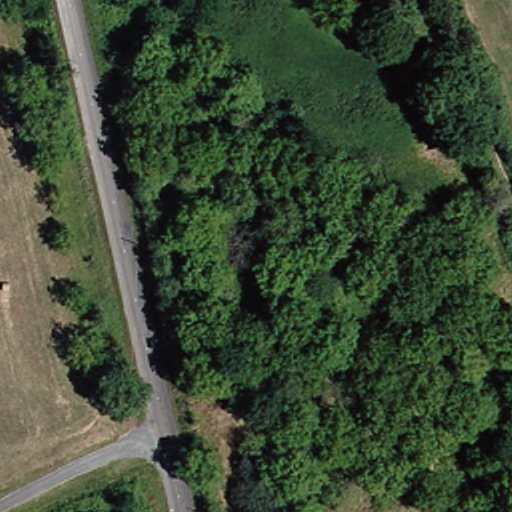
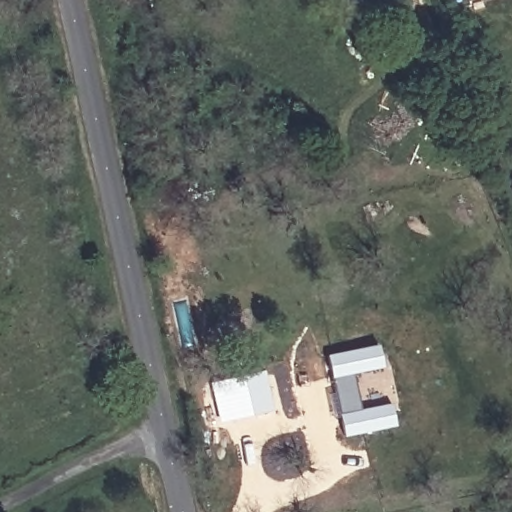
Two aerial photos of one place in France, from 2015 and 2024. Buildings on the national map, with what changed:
new [(377,345),(382,368),(352,374),(359,409),(390,403),(395,427),(343,437),(326,354),(377,345)]
new [(263,370),(272,411),(219,423),(210,382),(263,370)]

